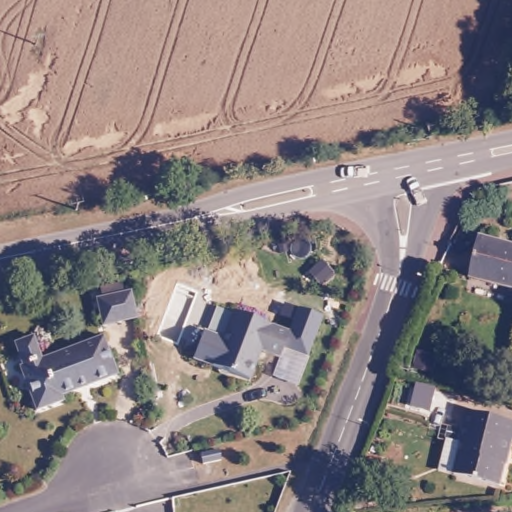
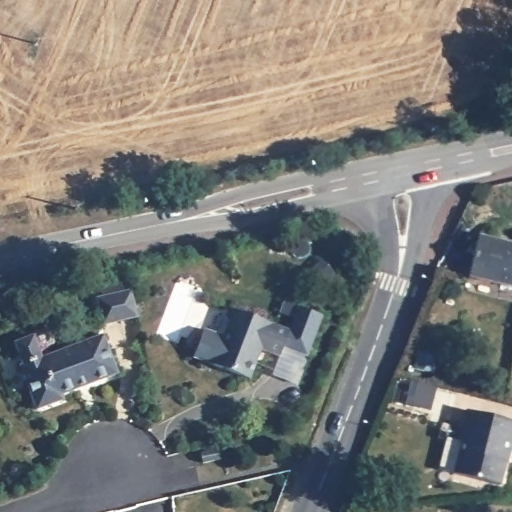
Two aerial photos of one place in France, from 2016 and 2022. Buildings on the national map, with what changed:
unchanged [(512,286),(461,274),(473,232),(512,243),(512,286)]
unchanged [(96,298),(130,292),(135,319),(101,325),(96,298)]
unchanged [(293,331),(295,320),(278,313),(284,301),(324,316),(309,357),(289,349),(293,331)]
unchanged [(286,359),(264,354),(257,384),(215,374),(233,314),(293,331),(286,359)]
unchanged [(117,374),(60,398),(61,402),(36,411),(27,388),(19,369),(22,368),(12,344),(31,336),(36,349),(41,360),(101,335),(117,374)]
unchanged [(199,339),(224,344),(215,374),(192,371),(199,339)]
unchanged [(415,355),(411,370),(394,366),(398,351),(415,355)]
unchanged [(512,437),(506,437),(495,488),(453,475),(461,442),(456,439),(466,404),(512,418),(512,437)]
unchanged [(183,445),(200,441),(203,451),(185,455),(183,445)]

